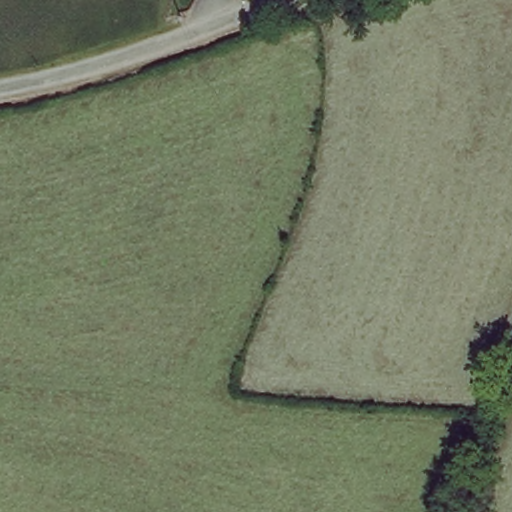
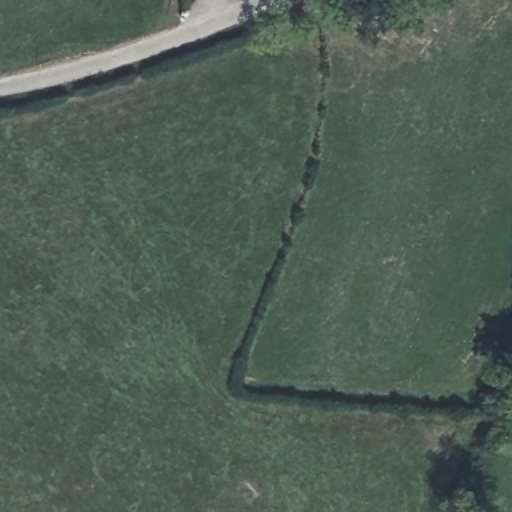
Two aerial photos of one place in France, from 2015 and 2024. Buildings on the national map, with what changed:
[]

